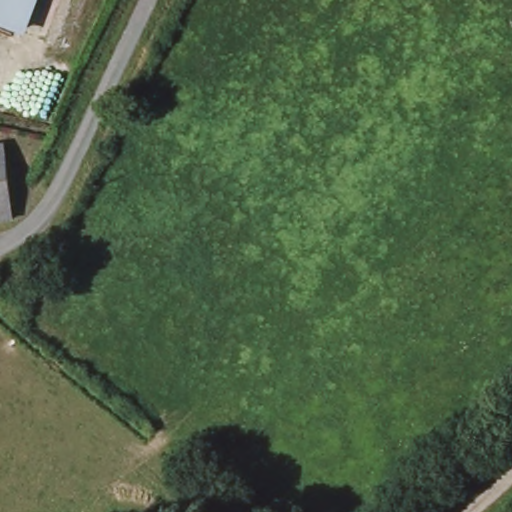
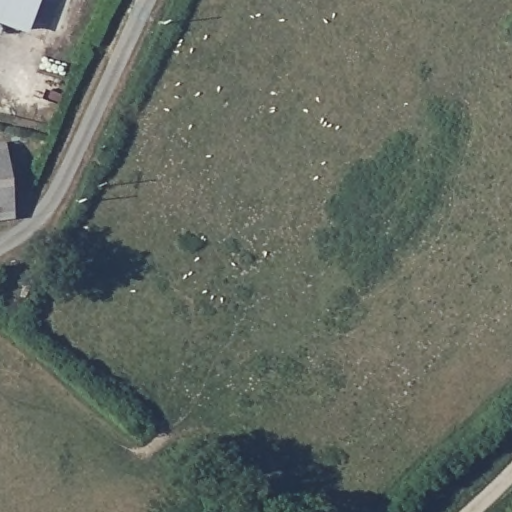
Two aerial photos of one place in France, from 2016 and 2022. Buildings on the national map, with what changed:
unchanged [(0,21),(0,0),(40,0),(28,32),(0,21)]
unchanged [(0,222),(0,146),(13,144),(15,160),(19,194),(22,219),(0,222)]

